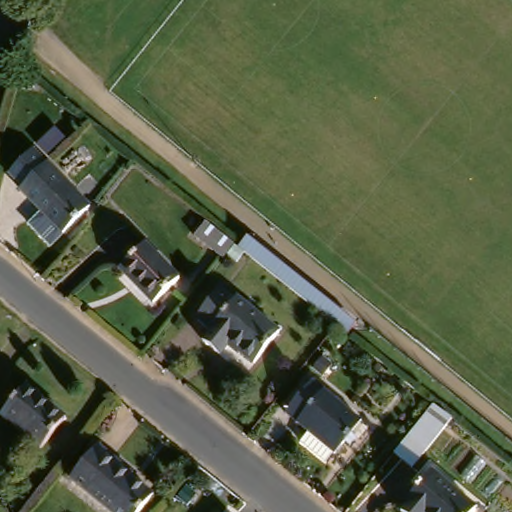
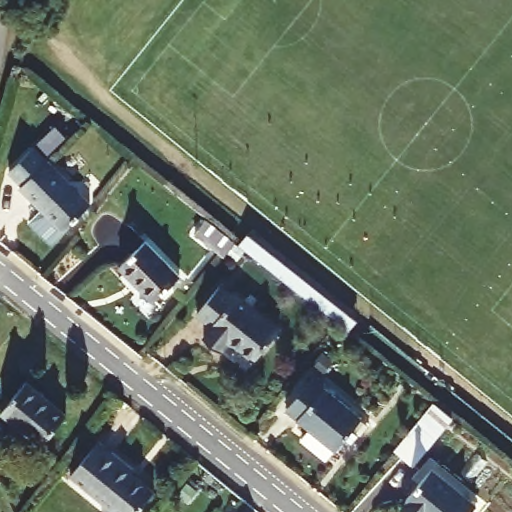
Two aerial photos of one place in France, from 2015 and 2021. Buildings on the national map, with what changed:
unchanged [(93,200),(66,230),(19,189),(22,185),(7,172),(30,146),(93,200)]
unchanged [(359,318),(347,332),(341,327),(331,318),(237,239),(249,226),(359,318)]
unchanged [(183,275),(161,300),(124,270),(147,244),(183,275)]
unchanged [(282,333),(254,366),(235,350),(226,361),(206,343),(214,334),(194,318),(223,284),(282,333)]
unchanged [(304,437),(313,428),(293,411),(318,380),(364,419),(339,450),(337,449),(329,458),(304,437)]
unchanged [(69,416),(43,446),(23,429),(14,421),(6,414),(12,407),(32,384),(69,416)]
unchanged [(432,404),(450,419),(410,467),(392,452),(432,404)]
unchanged [(134,477),(154,493),(138,512),(113,512),(73,477),(104,442),(139,472),(134,477)]
unchanged [(472,512),(405,512),(402,510),(432,473),(475,508),(472,512)]

